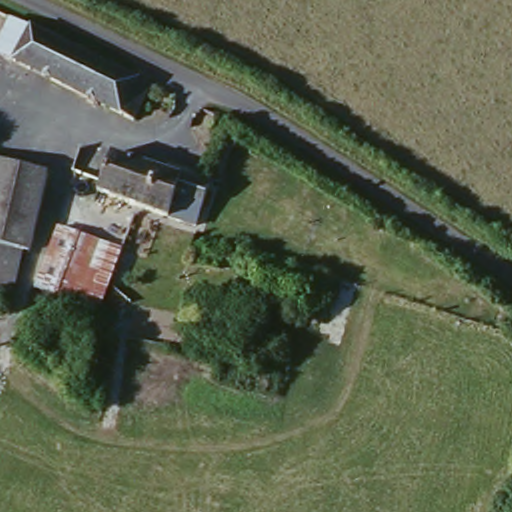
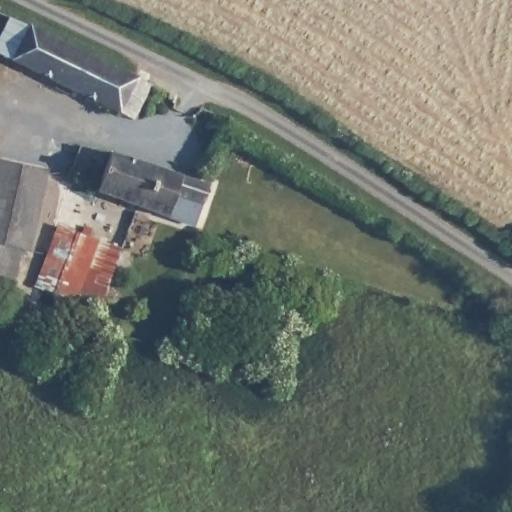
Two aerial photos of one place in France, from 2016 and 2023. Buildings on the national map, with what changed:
unchanged [(3,55),(0,54),(0,15),(1,12),(20,21),(142,80),(125,115),(3,55)]
unchanged [(190,225),(132,206),(94,194),(98,180),(68,170),(76,146),(107,156),(108,152),(115,155),(206,186),(190,225)]
unchanged [(0,246),(0,162),(42,172),(24,251),(17,250),(0,246)]
unchanged [(100,306),(36,284),(56,220),(107,238),(116,215),(129,222),(100,306)]
unchanged [(10,286),(6,305),(0,303),(0,246),(17,250),(10,286)]
unchanged [(282,370),(276,385),(220,375),(222,357),(282,370)]

